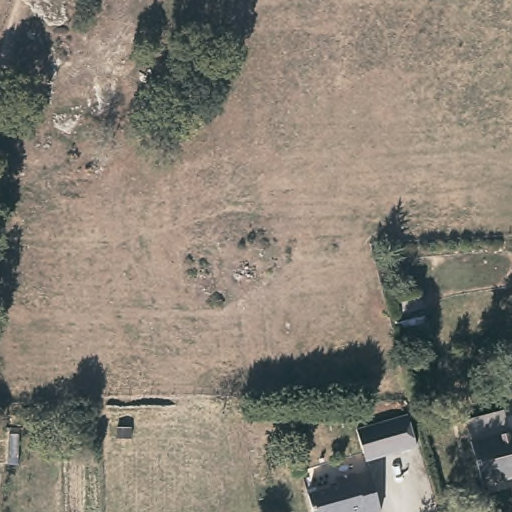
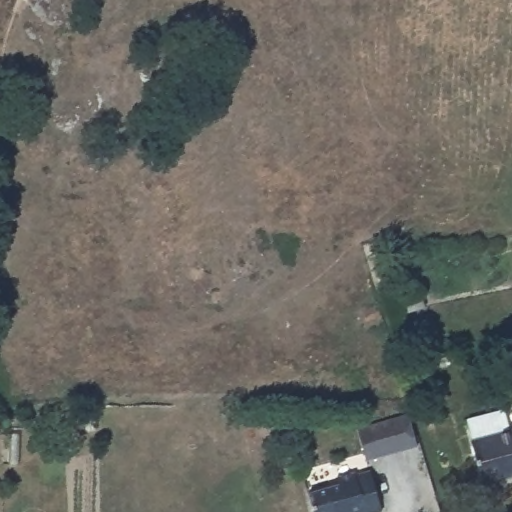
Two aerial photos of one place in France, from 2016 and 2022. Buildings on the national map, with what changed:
unchanged [(366,453),(359,430),(410,415),(419,446),(384,456),(368,460),(366,453)]
unchanged [(470,452),(512,439),(512,487),(483,496),(470,452)]
unchanged [(380,510),(371,512),(312,512),(306,492),(337,484),(334,475),(351,471),(352,474),(369,469),(380,510)]

